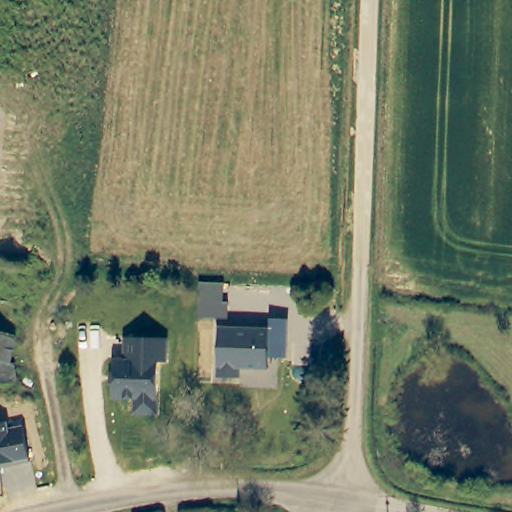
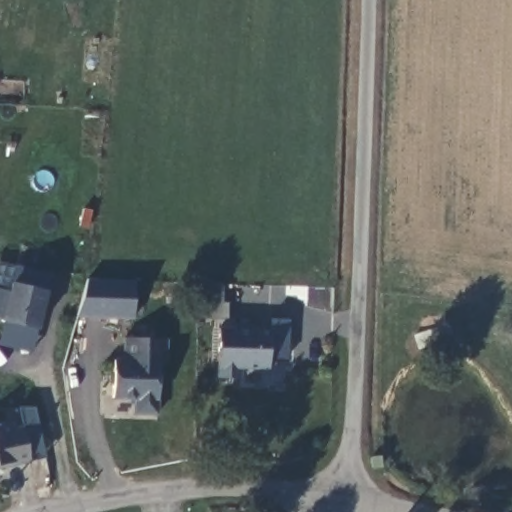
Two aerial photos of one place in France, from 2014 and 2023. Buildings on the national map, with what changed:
new [(11,283),(15,264),(53,274),(50,291),(39,330),(34,352),(0,345),(0,325),(1,320),(0,320),(0,288),(9,290),(11,283)]
new [(134,319),(76,317),(87,279),(134,280),(134,319)]
unchanged [(197,318),(198,283),(224,283),(225,300),(230,300),(229,318),(197,318)]
unchanged [(270,358),(270,369),(242,369),(240,378),(217,377),(217,327),(272,328),(272,317),(288,317),(288,360),(270,358)]
demolished [(0,361),(0,331),(17,334),(10,362),(0,361)]
unchanged [(159,363),(158,414),(135,415),(134,399),(112,400),(111,360),(127,359),(127,339),(167,338),(168,364),(159,363)]
unchanged [(0,423),(7,422),(10,427),(23,425),(30,462),(0,466),(0,423)]

